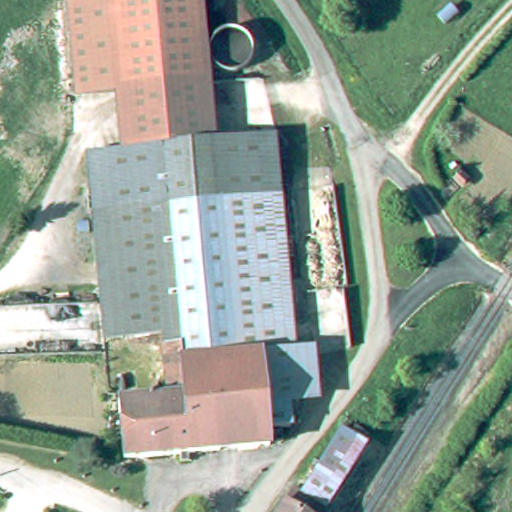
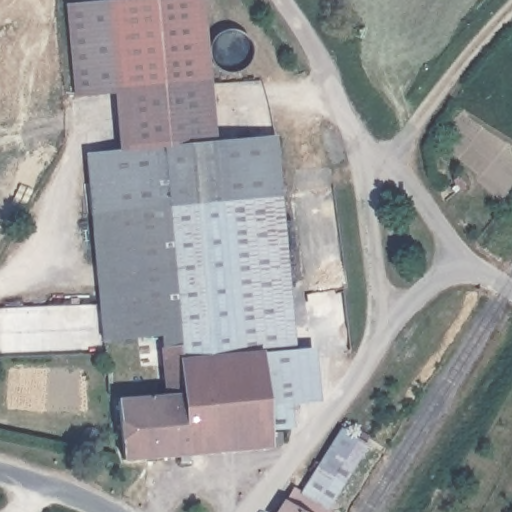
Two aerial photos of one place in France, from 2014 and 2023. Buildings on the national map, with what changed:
unchanged [(219,131),(124,142),(120,142),(115,91),(75,95),(68,0),(111,0),(120,81),(215,73),(219,131)]
unchanged [(215,73),(120,81),(111,0),(209,0),(215,73)]
unchanged [(120,142),(124,142),(219,131),(277,125),(302,392),(292,393),(294,419),(272,421),(274,435),(125,450),(119,388),(164,384),(159,323),(92,329),(72,146),(120,142)]
unchanged [(326,504),(329,506),(325,512),(273,512),(292,483),(300,488),(340,429),(365,444),(326,504)]

